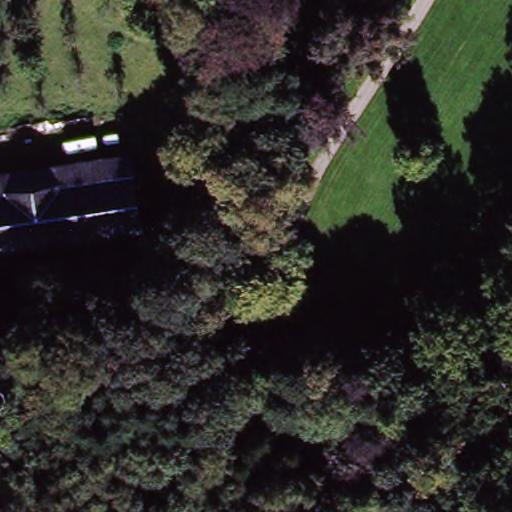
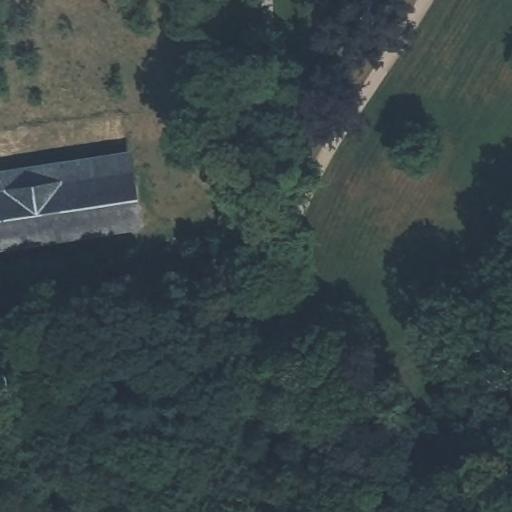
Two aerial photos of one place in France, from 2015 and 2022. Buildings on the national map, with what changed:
unchanged [(131,152),(139,204),(0,225),(0,173),(131,152)]

